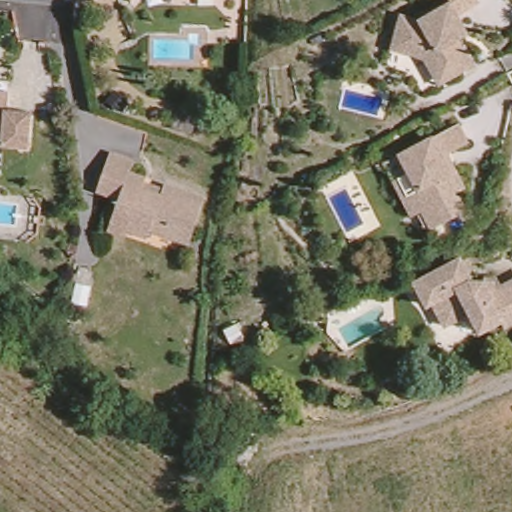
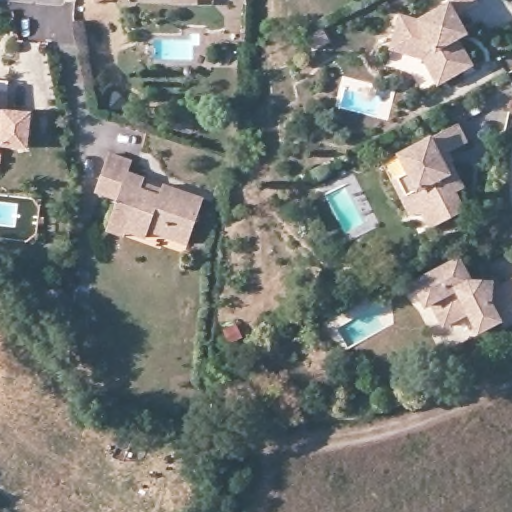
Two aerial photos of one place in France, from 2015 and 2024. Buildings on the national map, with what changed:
unchanged [(92,0),(104,0),(94,4),(92,0)]
unchanged [(429,72),(421,58),(405,54),(388,49),(397,14),(416,19),(448,1),(466,32),(456,38),(472,65),(456,73),(436,85),(429,72)]
unchanged [(7,89),(4,108),(30,111),(25,145),(25,146),(0,143),(0,89),(7,89)]
unchanged [(389,179),(395,176),(406,170),(397,152),(455,122),(465,141),(443,152),(452,168),(461,187),(452,191),(462,209),(429,226),(420,208),(413,212),(408,215),(389,179)]
unchanged [(100,225),(107,207),(112,196),(91,188),(104,151),(125,159),(122,169),(139,176),(138,180),(156,187),(158,182),(196,197),(179,241),(142,227),(139,235),(117,227),(116,231),(100,225)]
unchanged [(490,318),(479,301),(453,316),(439,291),(436,293),(423,270),(467,247),(479,270),(493,269),(493,266),(505,266),(509,274),(512,273),(512,312),(509,307),(490,318)]

